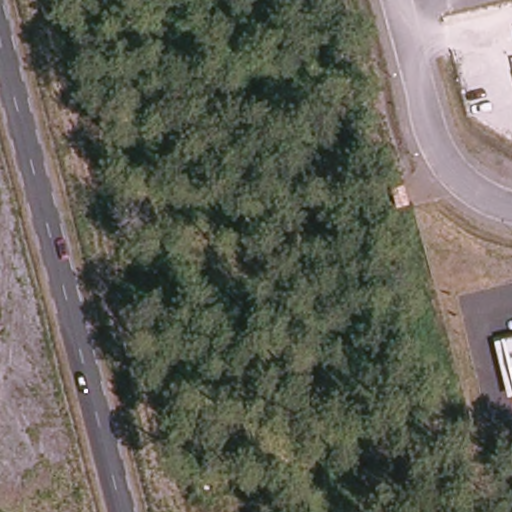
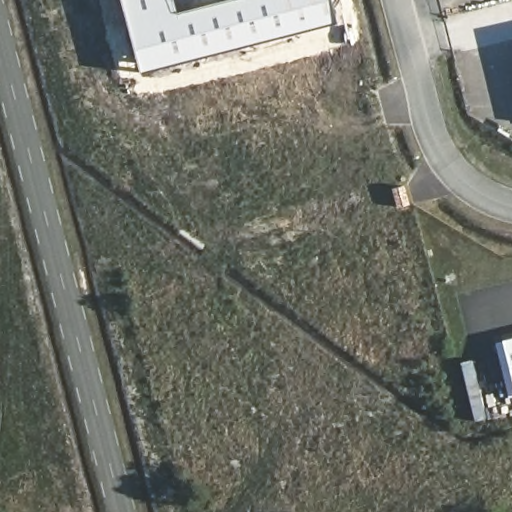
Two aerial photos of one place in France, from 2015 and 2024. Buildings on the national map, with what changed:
new [(119,0),(172,0),(175,11),(221,0),(330,0),(337,23),(139,71),(119,0)]
unchanged [(508,398),(494,343),(512,338),(512,397),(508,398)]

